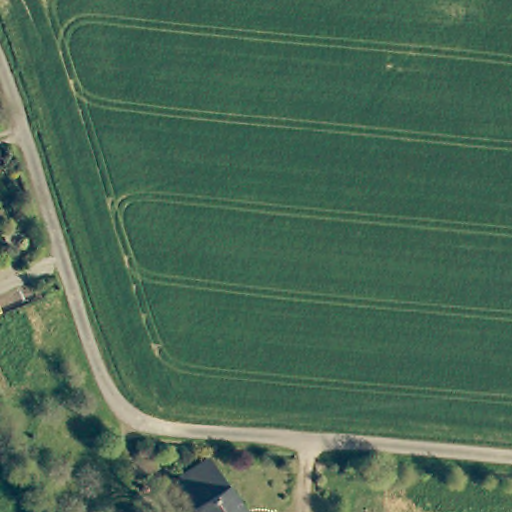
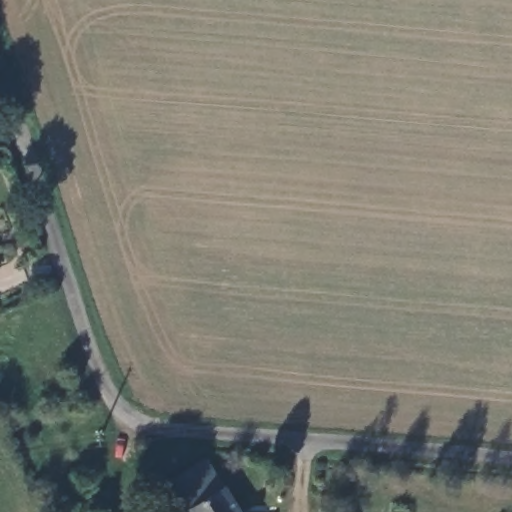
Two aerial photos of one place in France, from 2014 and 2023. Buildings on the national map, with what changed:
unchanged [(232,495),(241,512),(198,512),(196,510),(209,503),(197,481),(214,472),(227,497),(232,495)]

